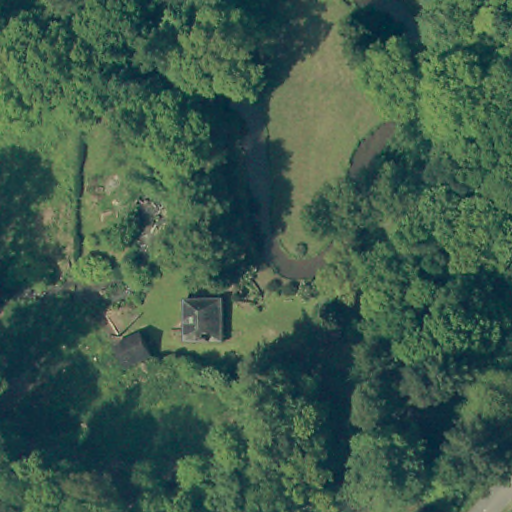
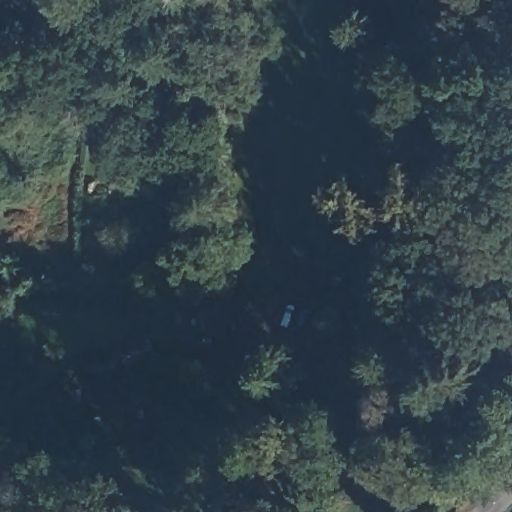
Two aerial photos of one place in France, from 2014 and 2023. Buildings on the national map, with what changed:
unchanged [(217,296),(217,340),(181,339),(181,296),(217,296)]

